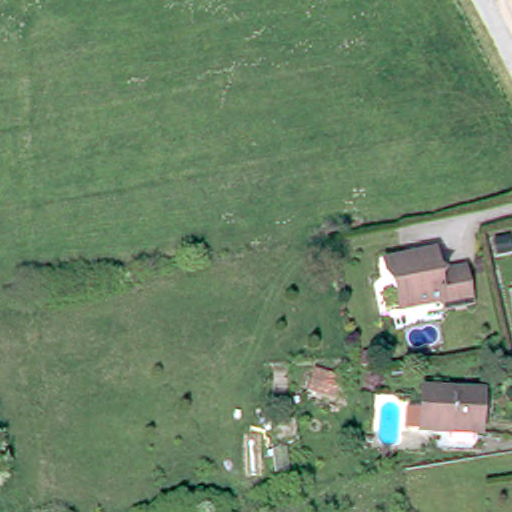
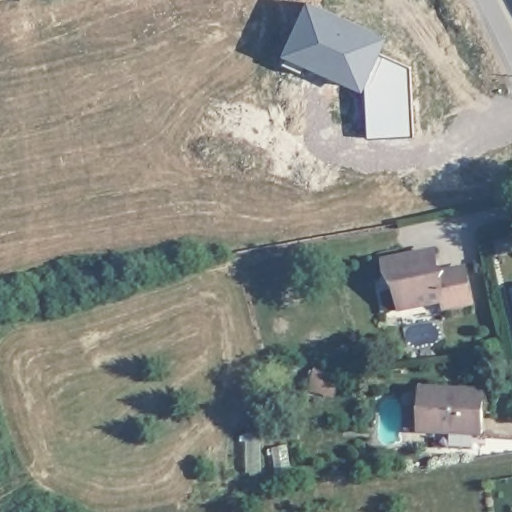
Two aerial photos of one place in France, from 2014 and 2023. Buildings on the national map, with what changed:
unchanged [(511,0),(512,0),(512,2),(511,0)]
new [(375,31),(386,36),(380,52),(411,67),(415,136),(368,138),(365,87),(310,62),(305,74),(282,64),(311,2),(375,31)]
unchanged [(439,291),(395,300),(391,282),(382,266),(380,252),(430,241),(433,258),(440,262),(460,258),(467,293),(440,298),(439,291)]
unchanged [(422,389),(483,392),(481,434),(420,431),(422,389)]

